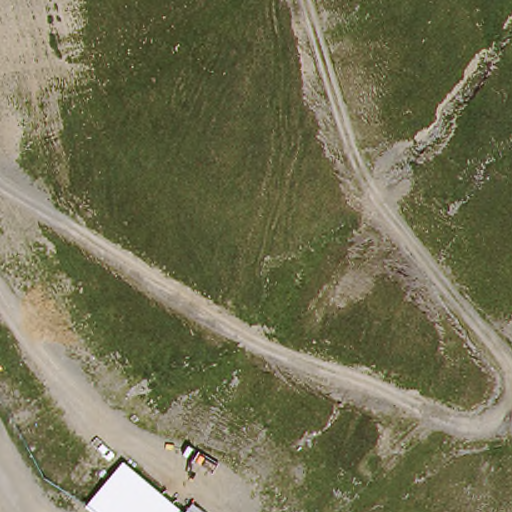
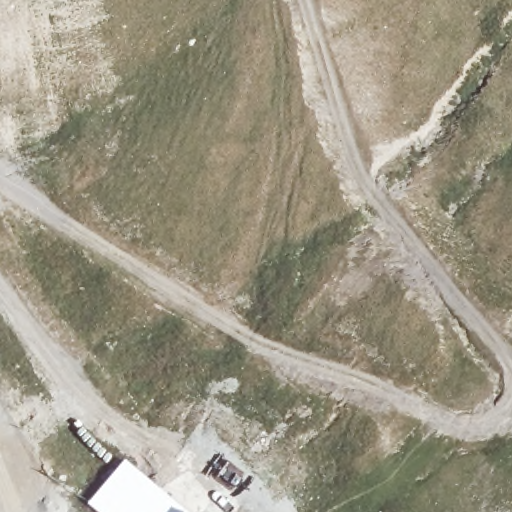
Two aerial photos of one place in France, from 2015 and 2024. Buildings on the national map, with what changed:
unchanged [(104,512),(92,504),(125,461),(196,512),(104,512)]

